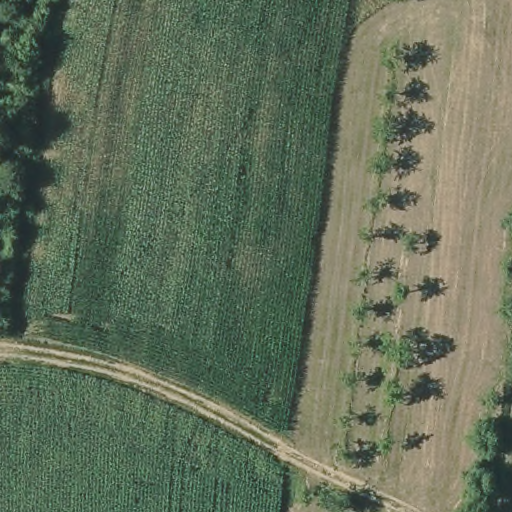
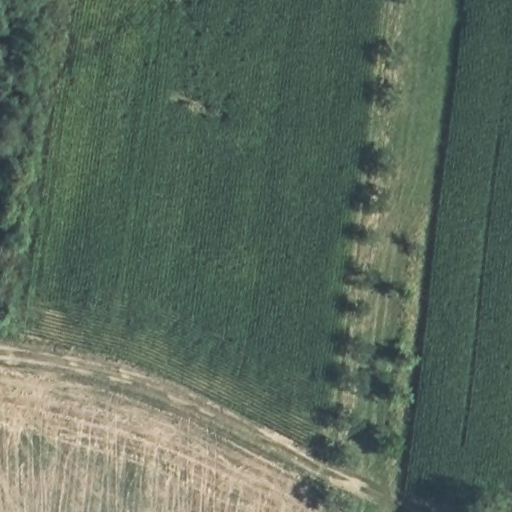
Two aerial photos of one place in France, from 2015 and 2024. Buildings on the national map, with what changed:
[]

